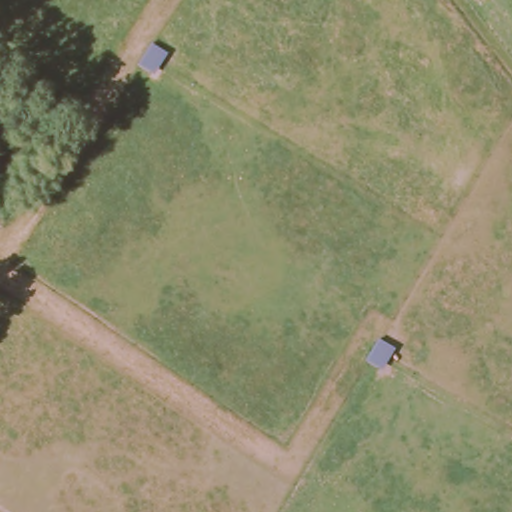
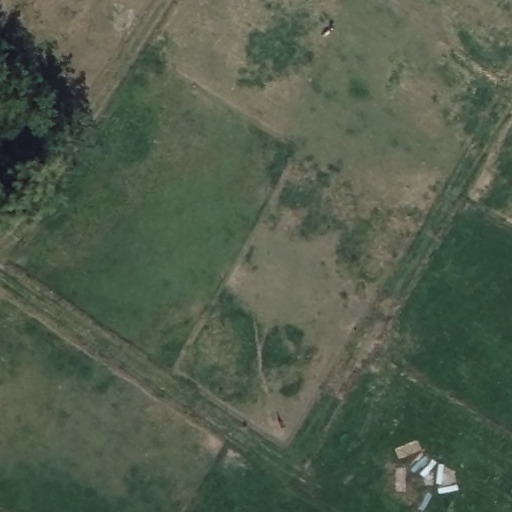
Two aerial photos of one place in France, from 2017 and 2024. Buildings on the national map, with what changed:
unchanged [(151,58),(165,37),(177,46),(164,66),(151,58)]

